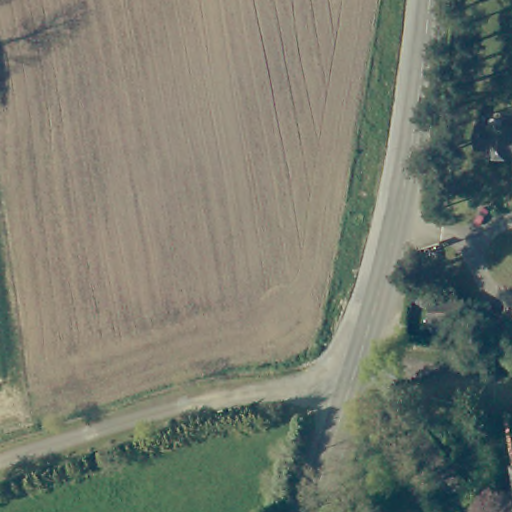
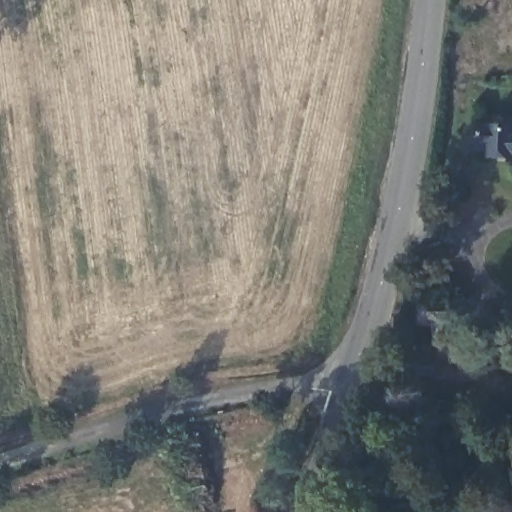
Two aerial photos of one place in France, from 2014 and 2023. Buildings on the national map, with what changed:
unchanged [(492,156),(492,149),(480,148),(482,127),(512,127),(512,157),(492,156)]
unchanged [(436,340),(436,325),(433,325),(433,299),(467,300),(467,325),(466,340),(436,340)]

